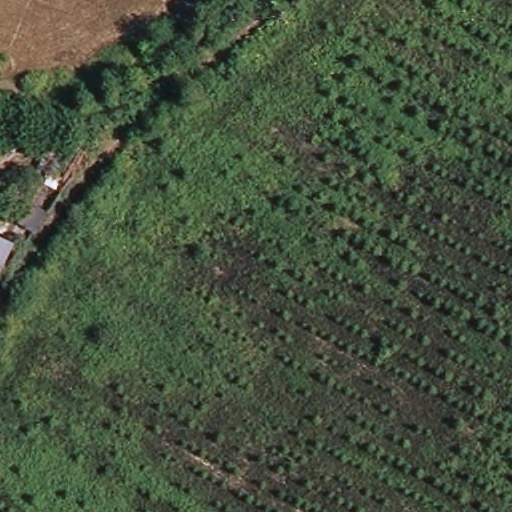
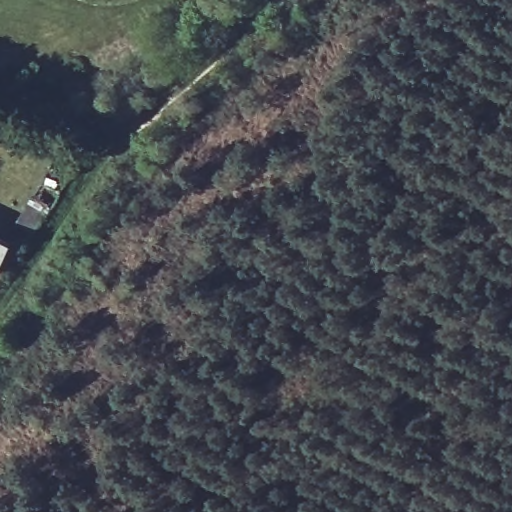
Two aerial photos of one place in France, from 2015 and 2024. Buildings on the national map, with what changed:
unchanged [(0,242),(15,250),(0,274),(0,242)]

